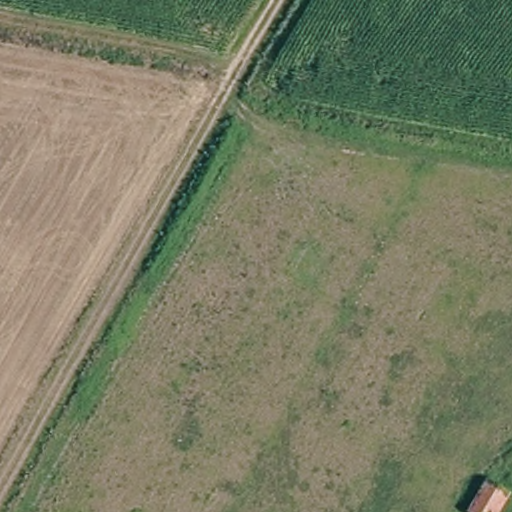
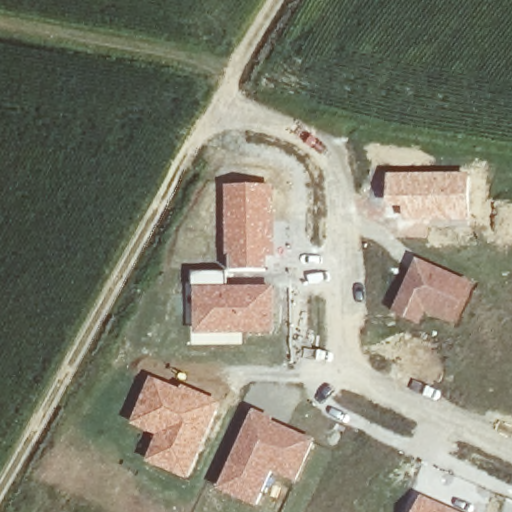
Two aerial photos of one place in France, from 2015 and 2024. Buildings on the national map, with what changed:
new [(470,175),(472,222),(406,224),(405,209),(390,209),(389,176),(470,175)]
new [(227,256),(227,186),(274,185),(277,257),(268,257),(269,272),(231,271),(231,256),(227,256)]
new [(473,283),(455,325),(426,312),(420,326),(394,314),(417,258),(473,283)]
new [(275,287),(275,335),(197,337),(196,287),(196,273),(230,273),(230,287),(275,287)]
new [(224,403),(190,482),(149,463),(160,437),(134,425),(154,378),(182,391),(185,387),(224,403)]
new [(317,442),(299,483),(275,472),(258,508),(219,491),(255,409),(276,420),(274,422),(317,442)]
unchanged [(499,512),(481,512),(473,507),(490,480),(511,492),(499,512)]
new [(457,512),(415,512),(422,496),(457,512)]

